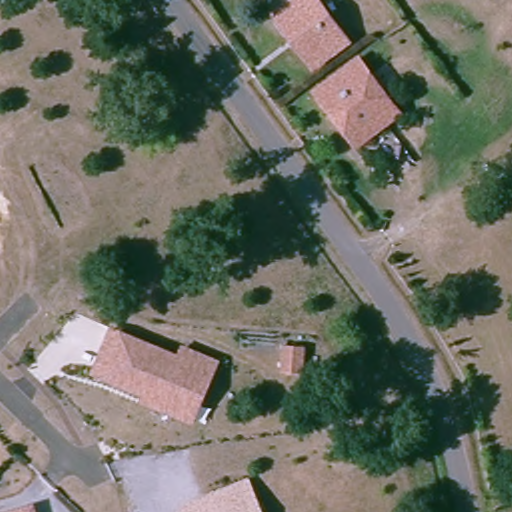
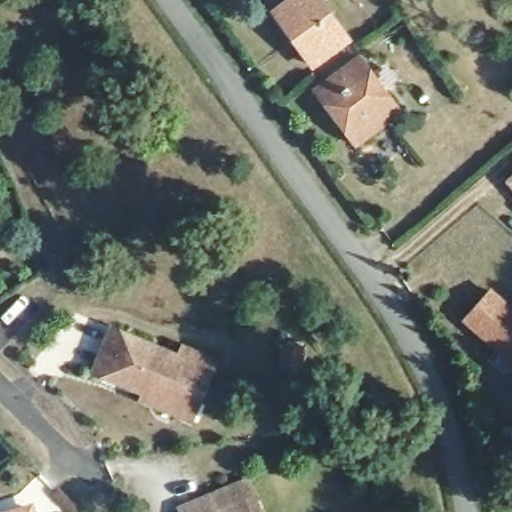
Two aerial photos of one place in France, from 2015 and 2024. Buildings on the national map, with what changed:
unchanged [(0,15),(0,0),(1,0),(8,7),(0,15)]
unchanged [(291,0),(319,0),(348,42),(314,67),(303,51),(284,27),(273,13),(291,0)]
unchanged [(399,112),(355,145),(317,91),(361,58),(399,112)]
new [(507,185),(512,180),(512,191),(507,185)]
new [(512,305),(512,365),(461,322),(491,287),(512,305)]
unchanged [(178,357),(183,348),(213,362),(201,388),(194,385),(180,417),(152,406),(155,399),(102,376),(114,350),(104,345),(111,327),(178,357)]
new [(304,368),(328,371),(325,396),(302,393),(304,368)]
unchanged [(250,477),(264,512),(177,512),(175,506),(250,477)]
unchanged [(30,512),(8,512),(29,507),(30,512)]

